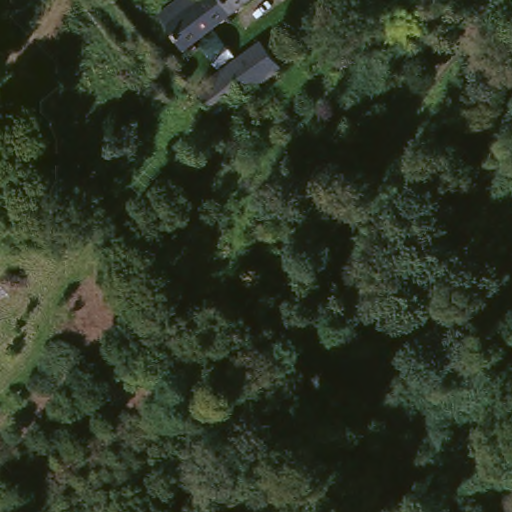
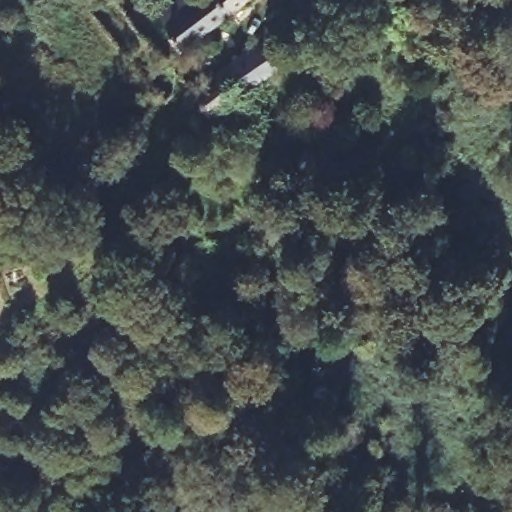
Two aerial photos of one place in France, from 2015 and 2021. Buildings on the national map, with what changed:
unchanged [(217,0),(224,11),(177,46),(159,22),(190,0),(217,0)]
unchanged [(217,0),(238,0),(224,11),(217,0)]
unchanged [(331,25),(321,0),(335,0),(343,17),(331,25)]
unchanged [(13,6),(14,6),(21,21),(0,31),(0,11),(13,6)]
unchanged [(293,22),(306,40),(310,46),(306,49),(281,70),(262,46),(293,22)]
unchanged [(256,37),(262,46),(281,70),(236,102),(218,116),(217,116),(193,82),(256,37)]
unchanged [(29,115),(64,146),(49,164),(14,132),(29,115)]

